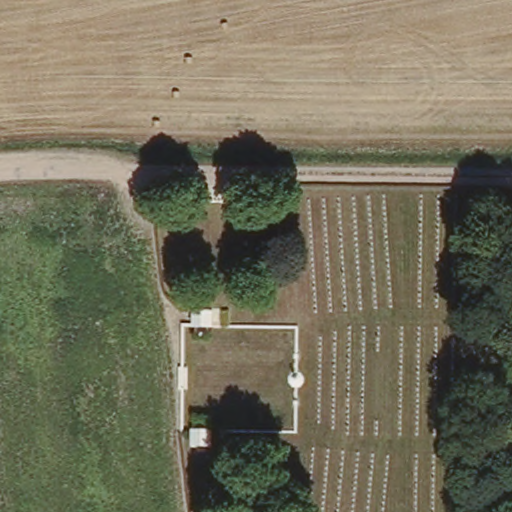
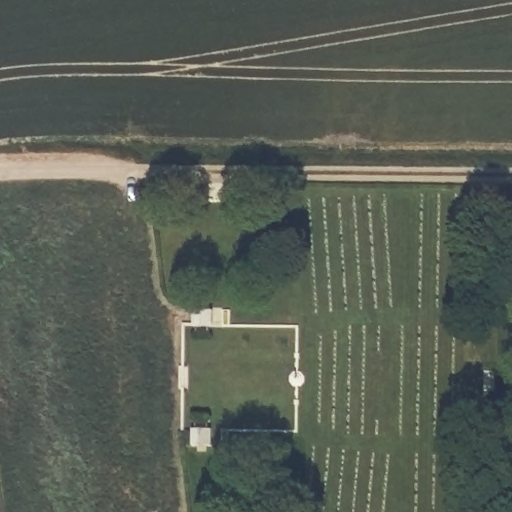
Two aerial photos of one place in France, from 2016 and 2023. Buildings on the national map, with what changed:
unchanged [(210,309),(211,325),(190,325),(190,308),(210,309)]
unchanged [(210,429),(209,445),(191,447),(190,429),(210,429)]

